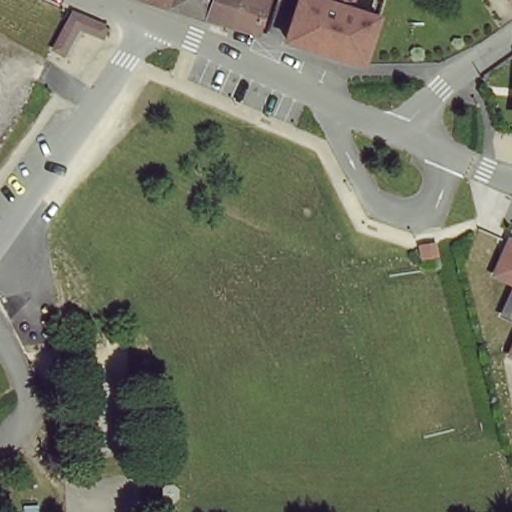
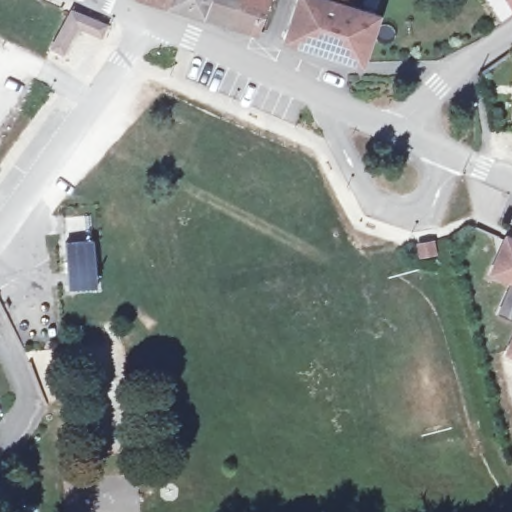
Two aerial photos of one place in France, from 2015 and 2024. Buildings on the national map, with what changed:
unchanged [(171,6),(152,1),(147,0),(203,0),(199,12),(191,10),(171,6)]
unchanged [(228,20),(209,15),(207,15),(212,0),(263,0),(255,28),(228,20)]
unchanged [(367,60),(300,40),(287,36),(299,0),(333,0),(380,14),(379,19),(367,60)]
unchanged [(512,0),(512,3),(509,0),(512,0)]
unchanged [(497,316),(510,287),(489,278),(504,237),(512,240),(512,322),(497,316)]
new [(66,244),(93,241),(98,288),(70,291),(66,244)]
unchanged [(512,326),(512,358),(501,353),(512,326)]

